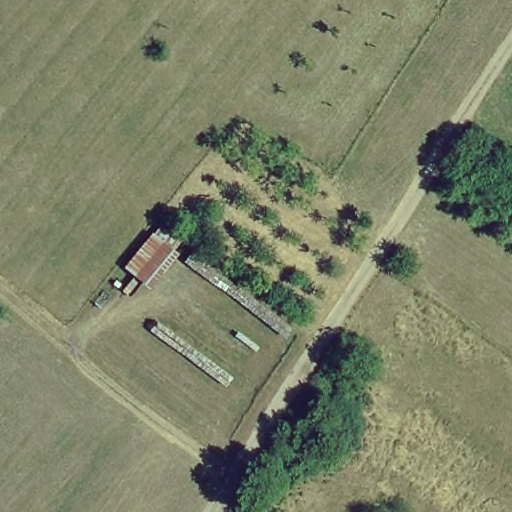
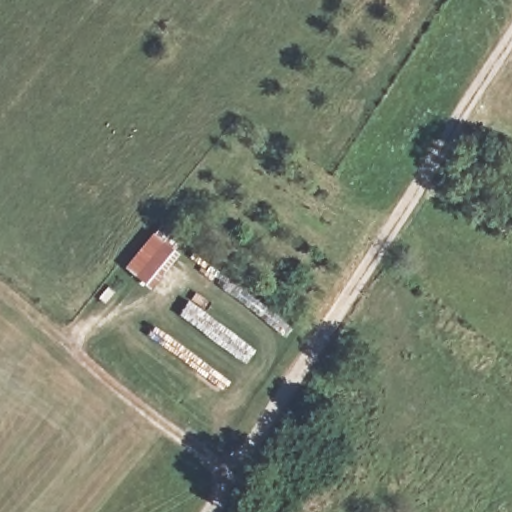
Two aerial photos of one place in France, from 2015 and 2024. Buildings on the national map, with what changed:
unchanged [(126,271),(163,228),(186,244),(153,291),(126,271)]

